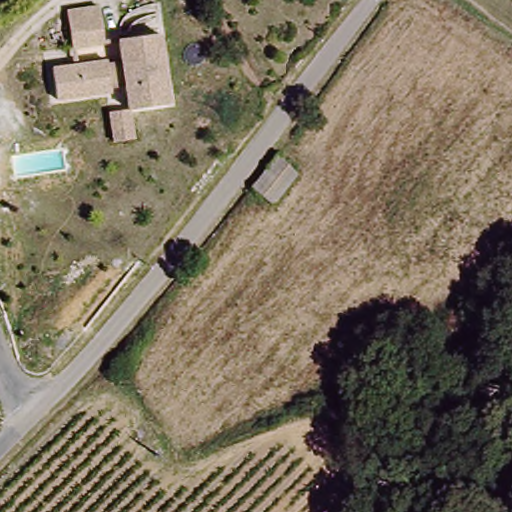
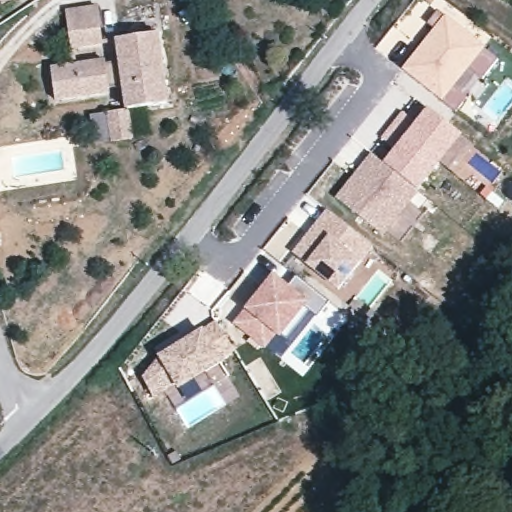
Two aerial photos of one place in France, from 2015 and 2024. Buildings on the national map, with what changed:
unchanged [(105,44),(72,48),(66,12),(99,7),(105,44)]
new [(403,71),(436,30),(428,24),(438,11),(499,60),(482,80),(468,68),(453,86),(468,99),(456,114),(403,71)]
unchanged [(57,105),(51,74),(109,65),(109,73),(120,71),(116,49),(155,41),(163,91),(166,110),(126,115),(123,97),(57,105)]
new [(396,149),(381,138),(402,112),(417,123),(429,109),(463,137),(418,192),(384,164),(396,149)]
unchanged [(126,115),(129,136),(111,138),(109,126),(107,119),(126,115)]
new [(384,237),(335,199),(371,153),(418,192),(384,237)]
demolished [(298,174),(273,209),(253,192),(277,160),(298,174)]
new [(306,238),(311,242),(320,231),(315,227),(328,211),(372,247),(338,290),(293,253),(306,238)]
new [(233,324),(246,308),(247,308),(273,274),(289,286),(296,277),(328,302),(317,317),(309,310),(285,339),(282,336),(280,339),(277,338),(266,351),(233,324)]
new [(158,357),(203,328),(215,321),(236,354),(223,365),(179,392),(176,387),(155,399),(143,378),(158,357)]

